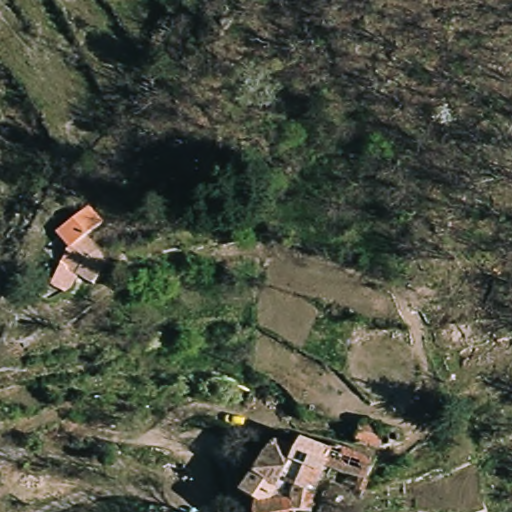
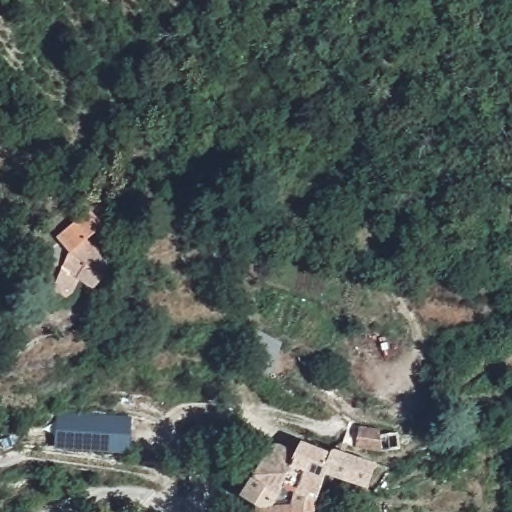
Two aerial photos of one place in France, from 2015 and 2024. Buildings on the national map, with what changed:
unchanged [(73,288),(61,295),(53,285),(67,250),(54,237),(87,211),(100,227),(84,240),(103,262),(95,268),(99,272),(95,275),(73,288)]
new [(130,453),(55,448),(57,412),(132,417),(130,453)]
unchanged [(368,451),(363,432),(385,425),(390,443),(368,451)]
unchanged [(239,493),(277,437),(292,443),(299,433),(330,445),(332,442),(376,456),(369,476),(326,474),(319,488),(314,512),(244,512),(245,505),(236,499),(239,493)]

